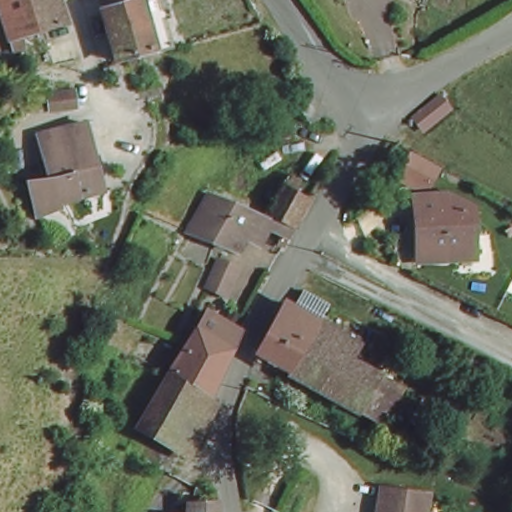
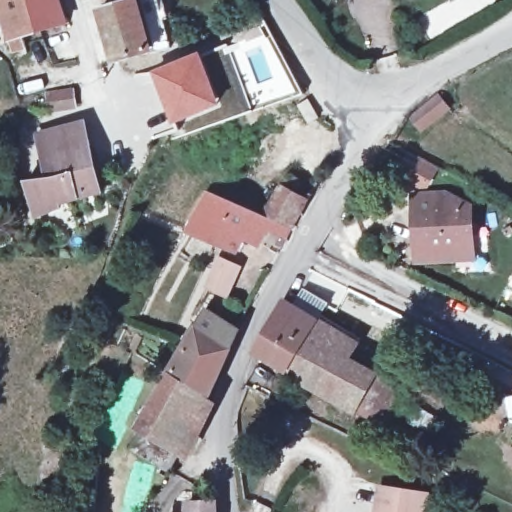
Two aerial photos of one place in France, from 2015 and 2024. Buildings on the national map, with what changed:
unchanged [(47,27),(24,35),(11,0),(37,0),(47,27)]
unchanged [(75,16),(47,27),(37,0),(68,0),(75,16)]
unchanged [(91,0),(122,0),(123,1),(97,12),(91,0)]
unchanged [(168,47),(113,68),(94,17),(139,0),(149,0),(168,47)]
new [(201,50),(223,105),(172,125),(150,70),(201,50)]
new [(74,85),(77,107),(49,111),(44,90),(74,85)]
unchanged [(446,106),(421,129),(411,119),(435,98),(446,106)]
unchanged [(100,191),(56,204),(57,211),(34,215),(26,180),(47,174),(37,133),(86,121),(100,191)]
unchanged [(404,148),(431,162),(423,178),(406,180),(392,172),(404,148)]
unchanged [(294,168),(311,180),(301,195),(313,203),(302,228),(257,211),(294,168)]
unchanged [(302,228),(293,248),(254,230),(242,258),(188,229),(207,192),(257,211),(302,228)]
unchanged [(472,221),(478,260),(436,262),(417,263),(413,205),(450,203),(472,221)]
unchanged [(233,294),(211,290),(207,288),(212,263),(238,269),(233,294)]
unchanged [(239,335),(217,379),(175,356),(183,336),(194,310),(200,311),(211,290),(248,313),(239,335)]
unchanged [(375,419),(249,356),(271,312),(279,315),(286,301),(309,312),(303,326),(344,346),(338,360),(389,385),(375,419)]
unchanged [(172,363),(214,384),(182,463),(167,457),(140,448),(149,425),(172,363)]
unchanged [(216,501),(216,512),(182,512),(184,502),(216,501)]
unchanged [(422,512),(386,512),(387,507),(422,512)]

